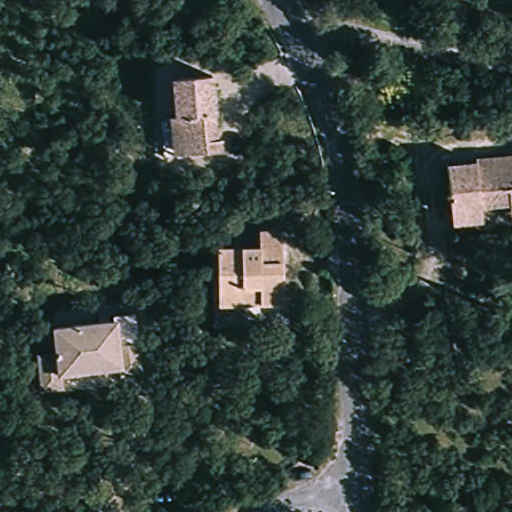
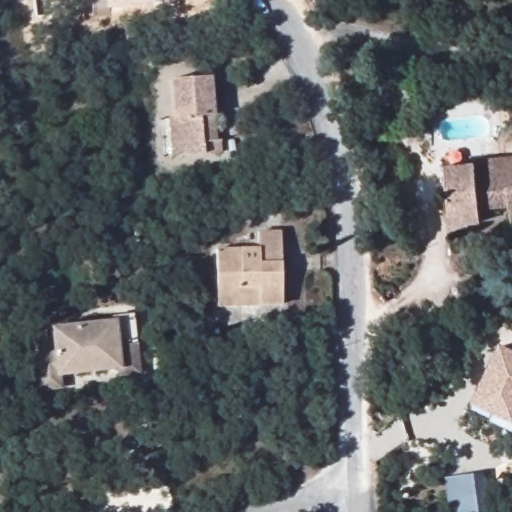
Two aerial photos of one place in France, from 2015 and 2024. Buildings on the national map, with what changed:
new [(106,0),(170,0),(107,9),(106,0)]
unchanged [(212,153),(194,154),(173,153),(160,151),(160,115),(168,115),(167,79),(203,80),(206,138),(213,138),(212,153)]
unchanged [(512,133),(512,135),(511,134),(512,133)]
unchanged [(448,177),(480,168),(482,177),(512,169),(512,202),(495,207),(498,215),(501,225),(470,233),(466,223),(448,177)]
unchanged [(260,298),(241,299),(242,310),(219,311),(214,266),(255,262),(252,243),(276,242),(285,308),(261,309),(260,298)]
unchanged [(115,385),(113,379),(58,386),(59,397),(35,399),(30,363),(50,361),(48,345),(105,340),(103,329),(125,327),(130,357),(135,383),(115,385)]
new [(493,364),(502,346),(512,351),(512,419),(475,401),(480,392),(490,370),(493,364)]
new [(475,476),(480,512),(446,512),(441,481),(475,476)]

